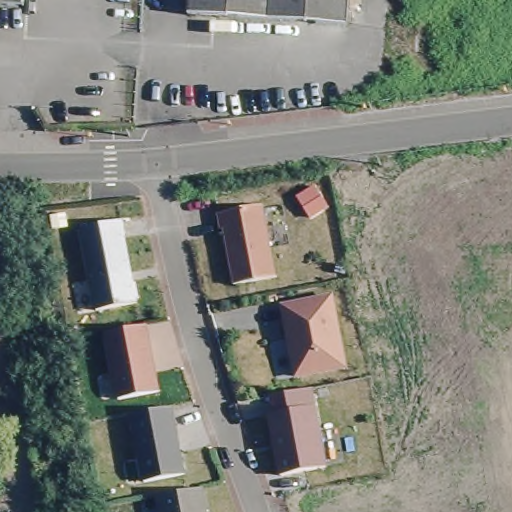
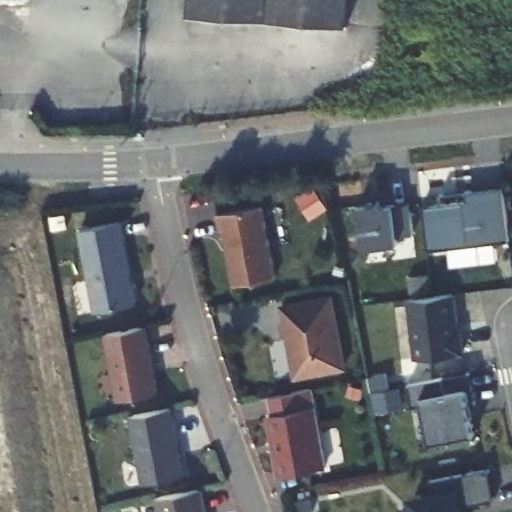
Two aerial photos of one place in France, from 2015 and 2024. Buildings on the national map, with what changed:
unchanged [(22,5),(0,4),(0,0),(23,0),(22,5)]
unchanged [(348,24),(190,18),(191,0),(349,0),(348,24)]
new [(429,250),(424,209),(468,203),(467,192),(502,187),(508,240),(429,250)]
new [(315,188),(325,207),(311,216),(300,197),(315,188)]
new [(437,193),(462,190),(463,199),(437,202),(437,193)]
new [(376,201),(377,206),(406,202),(410,234),(394,236),(395,243),(362,247),(357,203),(376,201)]
unchanged [(259,207),(273,278),(230,287),(220,230),(217,230),(214,215),(259,207)]
unchanged [(78,230),(122,221),(139,302),(96,312),(78,230)]
new [(495,242),(497,262),(450,267),(447,248),(495,242)]
new [(450,293),(454,324),(449,324),(450,331),(457,330),(460,353),(413,358),(405,298),(450,293)]
unchanged [(281,305),(333,296),(347,371),(294,380),(281,305)]
unchanged [(103,334),(147,326),(162,392),(117,399),(103,334)]
new [(372,374),(382,372),(385,387),(374,389),(372,374)]
new [(467,372),(472,403),(467,404),(470,414),(468,414),(472,434),(427,443),(419,405),(409,407),(405,384),(440,377),(467,372)]
new [(370,393),(393,388),(397,407),(373,412),(370,393)]
unchanged [(306,389),(321,468),(277,477),(265,416),(270,415),(267,397),(306,389)]
unchanged [(170,411),(184,475),(142,484),(128,418),(170,411)]
unchanged [(29,425),(34,459),(16,461),(10,428),(29,425)]
new [(425,480),(485,469),(492,499),(455,506),(456,512),(412,512),(410,499),(428,496),(425,480)]
unchanged [(198,489),(202,512),(156,512),(153,498),(172,494),(198,489)]

